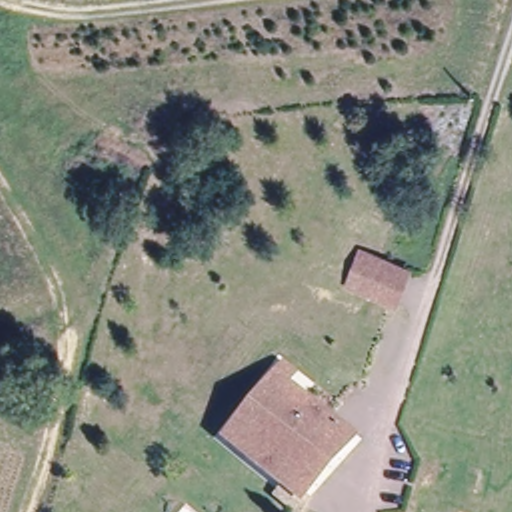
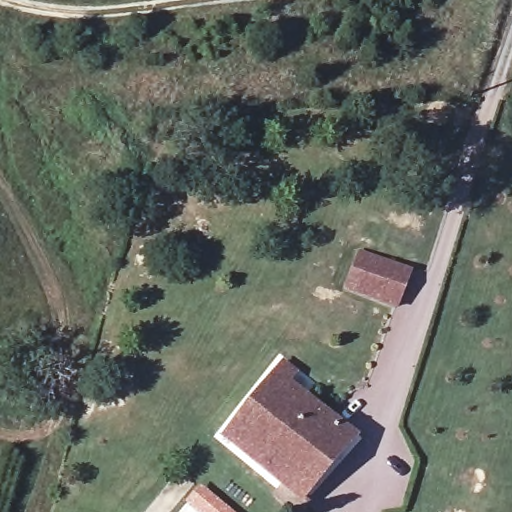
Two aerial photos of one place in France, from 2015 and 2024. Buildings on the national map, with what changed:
unchanged [(409,270),(397,310),(342,290),(357,250),(409,270)]
unchanged [(304,501),(223,436),(280,362),(294,372),(283,387),(347,440),(336,457),(317,483),(304,501)]
new [(185,503),(200,485),(233,512),(196,512),(185,503)]

